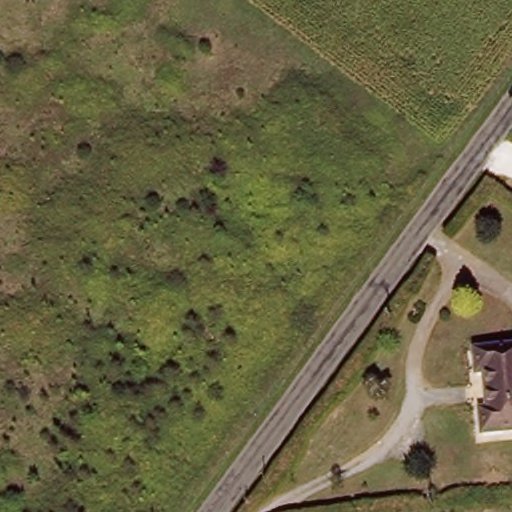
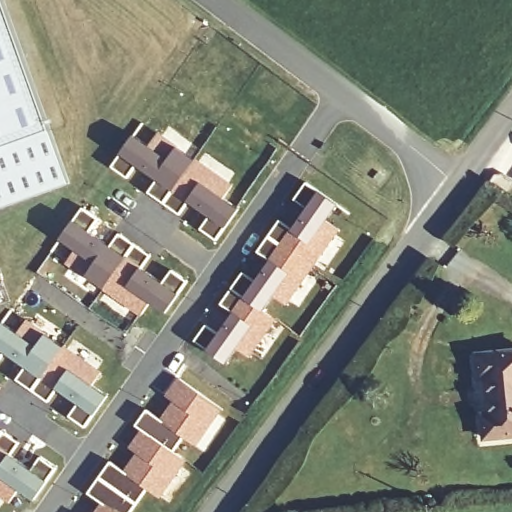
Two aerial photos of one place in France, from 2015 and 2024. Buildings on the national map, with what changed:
new [(0,145),(0,0),(6,0),(52,127),(0,145)]
new [(140,124),(155,134),(230,186),(222,199),(237,210),(215,241),(199,229),(208,217),(187,202),(179,215),(147,192),(155,180),(135,165),(126,178),(110,167),(132,136),(140,124)]
new [(0,145),(52,127),(69,184),(0,208),(0,145)]
new [(208,325),(220,335),(235,313),(222,304),(242,277),(255,285),(272,261),(259,252),(281,221),(294,229),(309,209),(296,199),(307,182),(339,204),(327,220),(340,229),(288,304),(275,295),(265,310),(277,319),(252,356),(239,347),(228,363),(197,341),(208,325)]
new [(99,219),(90,232),(110,246),(120,233),(152,255),(142,268),(163,282),(172,270),(188,281),(166,312),(151,302),(142,314),(68,262),(52,251),(61,239),(83,207),(99,219)]
new [(27,320),(101,372),(92,384),(107,395),(85,426),(70,415),(79,402),(58,387),(50,400),(17,378),(27,365),(5,351),(0,359),(0,325),(3,321),(12,308),(27,320)]
unchanged [(482,441),(477,354),(512,349),(512,435),(482,441)]
new [(104,502),(89,492),(110,460),(126,471),(135,457),(139,460),(142,454),(131,447),(143,428),(136,423),(147,408),(162,419),(171,406),(175,408),(179,403),(167,395),(180,377),(221,407),(195,443),(184,436),(174,450),(185,458),(160,495),(148,487),(130,512),(96,512),(104,502)]
new [(11,453),(32,468),(40,455),(57,467),(35,497),(20,487),(12,499),(0,491),(0,427),(20,441),(11,453)]

